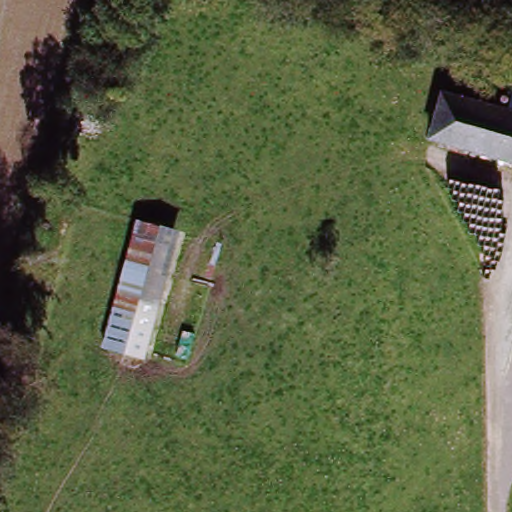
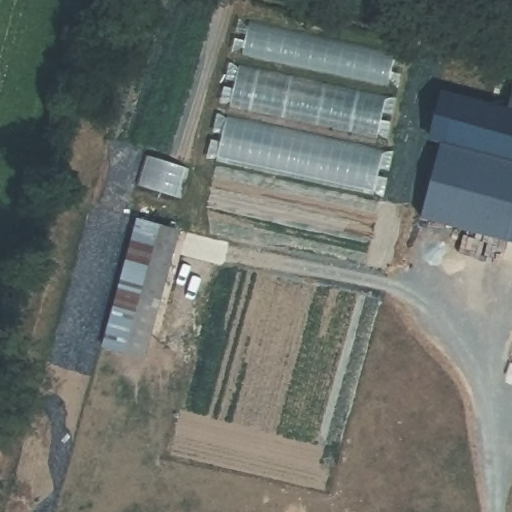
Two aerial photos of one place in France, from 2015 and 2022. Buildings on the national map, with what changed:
new [(253,21),(392,50),(384,84),(243,55),(253,21)]
new [(240,67),(383,96),(377,135),(228,106),(240,67)]
new [(443,142),(430,139),(446,91),(508,108),(512,91),(512,243),(423,218),(443,142)]
demolished [(459,97),(512,114),(512,164),(447,144),(459,97)]
new [(228,117),(380,149),(370,192),(217,160),(228,117)]
unchanged [(131,372),(87,357),(132,224),(177,237),(131,372)]

